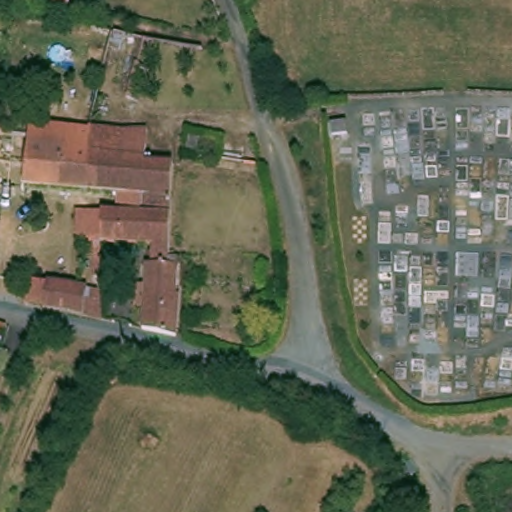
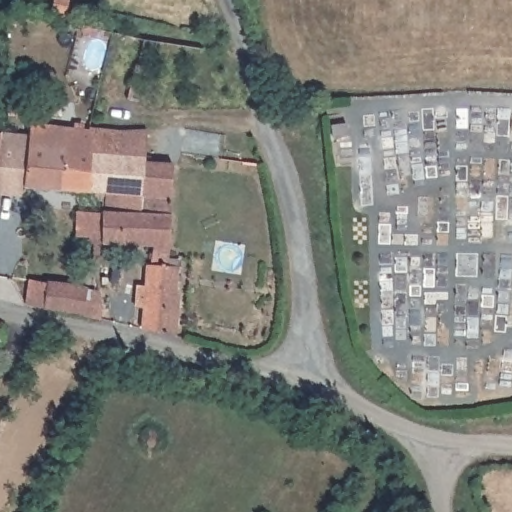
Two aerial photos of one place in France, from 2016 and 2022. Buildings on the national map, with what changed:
unchanged [(54,0),(70,0),(68,7),(83,11),(80,25),(49,20),(54,0)]
unchanged [(138,41),(125,98),(109,95),(107,102),(95,100),(108,35),(138,41)]
unchanged [(9,95),(26,97),(25,115),(8,115),(9,95)]
unchanged [(159,333),(138,330),(139,309),(131,308),(133,287),(141,288),(142,265),(145,266),(148,245),(98,244),(77,242),(77,231),(73,230),(74,212),(98,213),(135,215),(136,196),(64,190),(19,186),(24,136),(26,125),(47,127),(85,130),(85,129),(116,131),(142,130),(140,159),(140,163),(167,165),(166,181),(165,216),(165,222),(163,258),(164,258),(174,260),(173,267),(172,293),(172,295),(176,296),(173,339),(159,333)]
unchanged [(78,315),(39,308),(42,283),(82,288),(80,300),(97,302),(97,320),(78,315)]
unchanged [(0,325),(5,327),(0,344),(0,325)]

